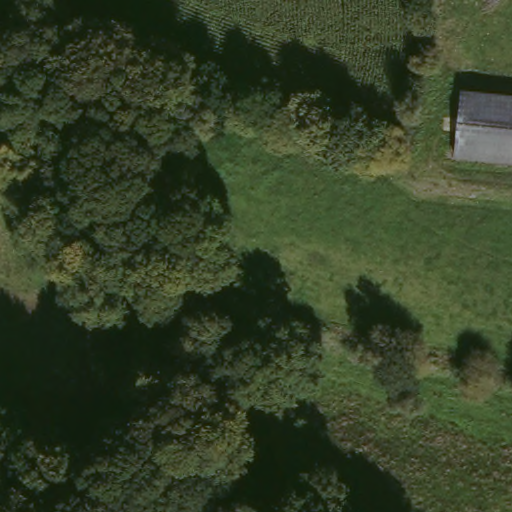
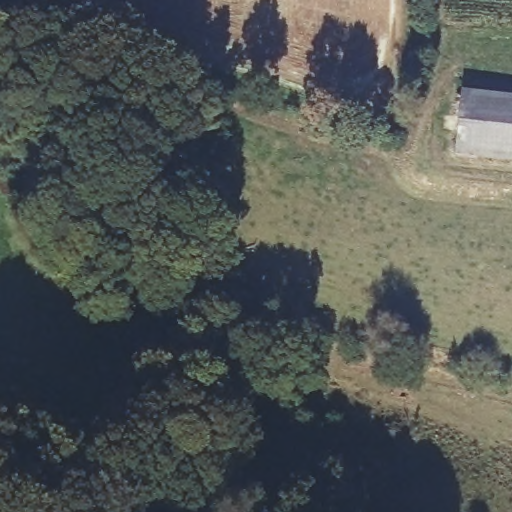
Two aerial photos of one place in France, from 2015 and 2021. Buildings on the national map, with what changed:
unchanged [(470,91),(512,96),(512,159),(463,153),(470,91)]

